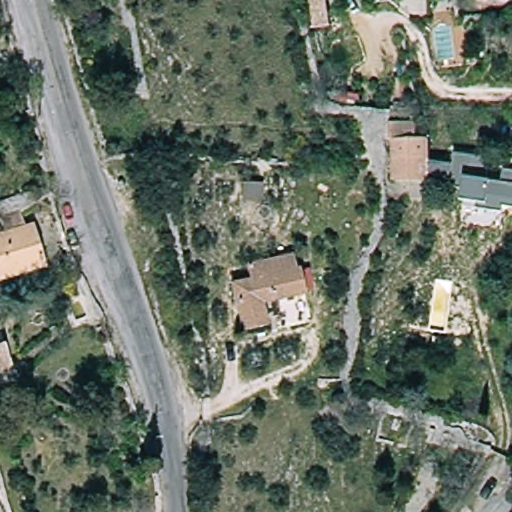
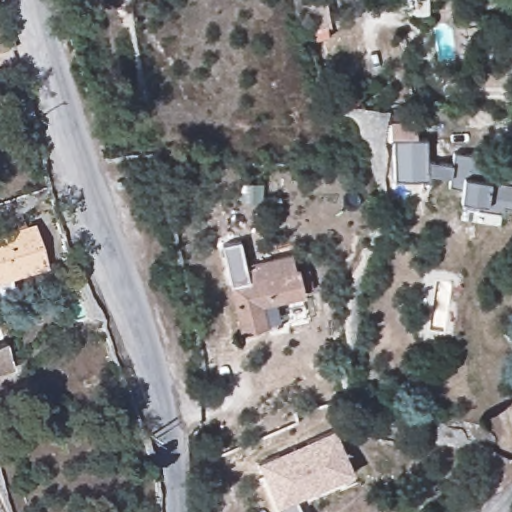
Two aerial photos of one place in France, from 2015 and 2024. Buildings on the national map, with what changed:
unchanged [(390,119),(411,121),(409,152),(426,153),(423,191),(389,189),(392,151),(381,150),(383,119),(390,119)]
unchanged [(502,211),(460,205),(461,199),(462,184),(424,176),(425,158),(451,162),(452,152),(488,159),(485,178),(502,181),(503,168),(512,170),(512,207),(504,206),(502,211)]
unchanged [(57,223),(44,227),(33,205),(47,199),(57,223)]
unchanged [(47,256),(33,261),(34,272),(0,285),(0,231),(33,219),(47,256)]
unchanged [(257,308),(261,330),(235,334),(227,286),(246,282),(244,269),(288,261),(291,275),(295,274),(299,301),(257,308)]
unchanged [(11,372),(0,376),(0,348),(1,347),(11,372)]
unchanged [(3,424),(0,426),(0,421),(3,424)]
new [(279,512),(260,462),(338,432),(355,477),(332,486),(296,500),(301,512),(279,512)]

